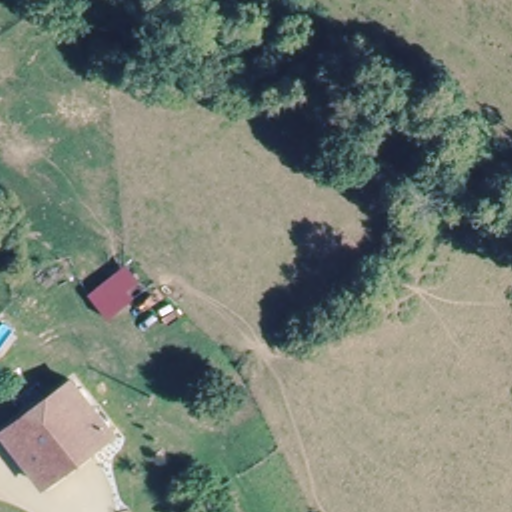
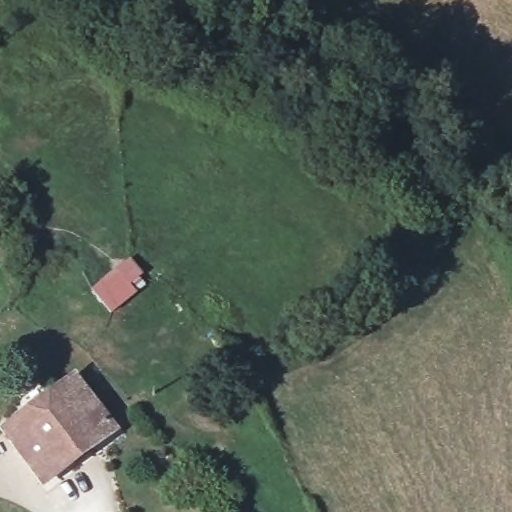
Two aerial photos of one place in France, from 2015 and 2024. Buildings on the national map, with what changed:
unchanged [(128,257),(143,273),(132,284),(138,290),(113,314),(92,288),(128,257)]
unchanged [(111,424),(40,481),(1,428),(70,373),(111,424)]

